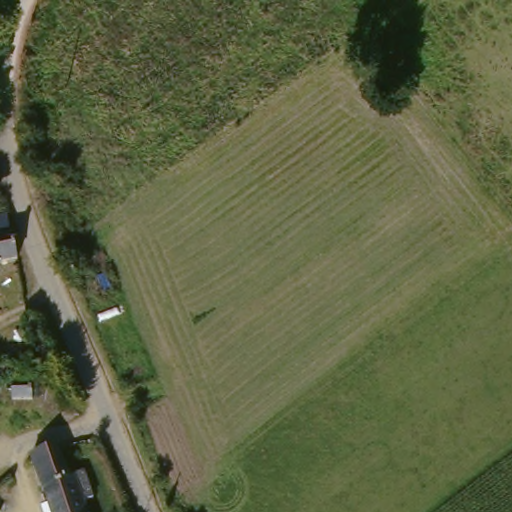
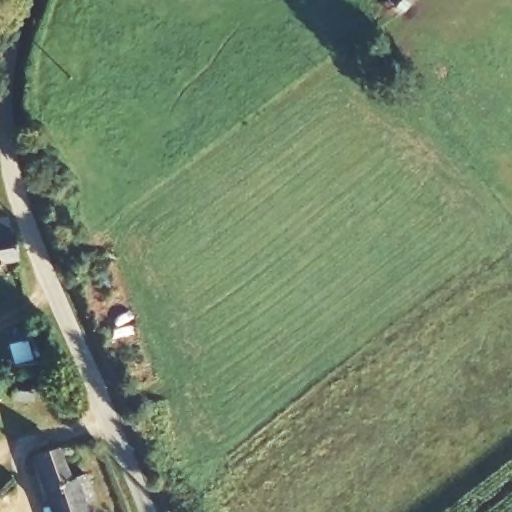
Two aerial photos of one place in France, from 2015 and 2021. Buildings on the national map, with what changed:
unchanged [(20,257),(0,261),(0,214),(11,212),(20,257)]
unchanged [(32,378),(33,398),(11,398),(10,379),(32,378)]
unchanged [(31,454),(58,443),(68,474),(84,468),(93,497),(83,501),(87,512),(51,512),(31,454)]

